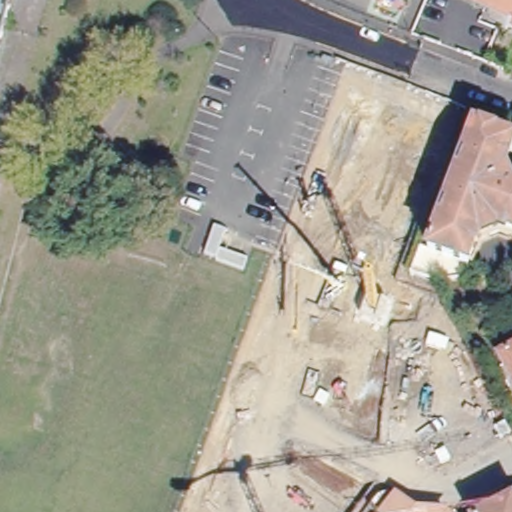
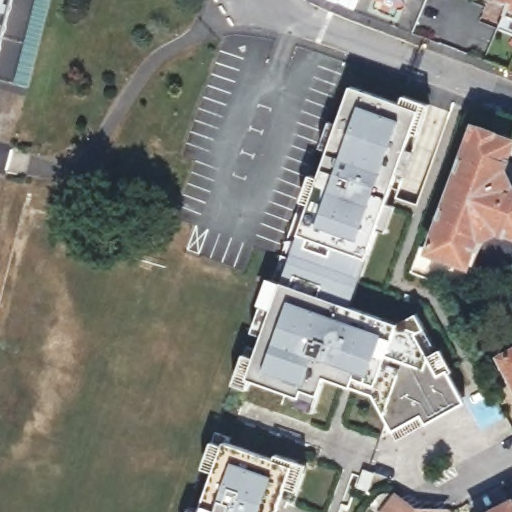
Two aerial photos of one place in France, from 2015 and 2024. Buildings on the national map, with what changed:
unchanged [(0,0),(10,0),(0,39),(0,0)]
new [(51,0),(29,86),(14,83),(36,0),(51,0)]
unchanged [(510,0),(512,0),(512,16),(505,14),(510,0)]
new [(353,86),(420,110),(367,258),(350,306),(399,324),(418,316),(449,373),(465,403),(427,424),(400,440),(394,430),(376,397),(352,387),(325,380),(319,396),(314,412),(287,403),(288,392),(250,380),(282,282),(300,235),(353,86)]
unchanged [(509,163),(512,169),(512,227),(504,224),(483,233),(470,271),(438,273),(435,273),(415,265),(425,239),(434,242),(479,121),(512,134),(512,155),(509,163)]
demolished [(411,175),(349,348),(342,345),(340,350),(291,332),(278,327),(344,151),(382,165),(411,175)]
unchanged [(508,273),(512,273),(512,282),(508,273)]
demolished [(329,380),(352,388),(305,512),(219,512),(222,505),(197,497),(262,321),(278,327),(291,332),(340,350),(329,380)]
unchanged [(502,356),(512,351),(512,376),(502,356)]
new [(225,443),(293,466),(276,512),(201,512),(225,443)]
unchanged [(420,510),(450,510),(451,512),(387,512),(400,495),(420,510)]
unchanged [(512,504),(512,512),(497,512),(512,504)]

